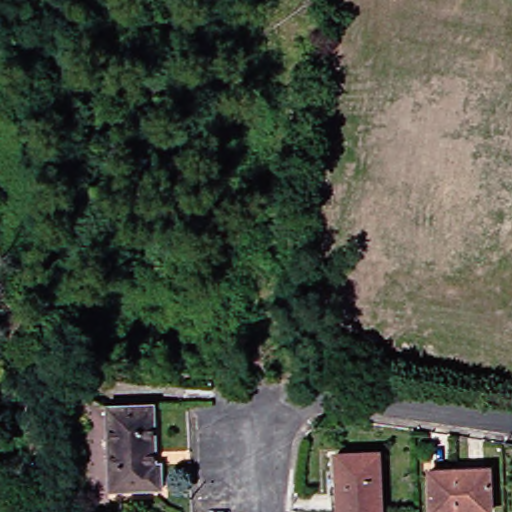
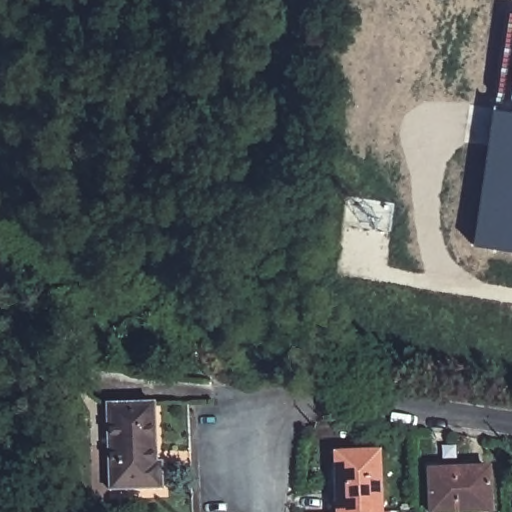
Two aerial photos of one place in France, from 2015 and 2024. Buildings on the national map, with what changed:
new [(489,108),(512,112),(512,252),(469,245),(489,108)]
unchanged [(158,462),(164,462),(165,486),(113,488),(108,404),(156,403),(158,462)]
unchanged [(338,509),(336,453),(343,453),(384,452),(386,511),(345,512),(345,508),(338,509)]
unchanged [(432,477),(435,477),(435,470),(489,468),(489,474),(491,474),(494,512),(434,512),(432,477)]
unchanged [(345,512),(386,511),(386,512),(345,512)]

